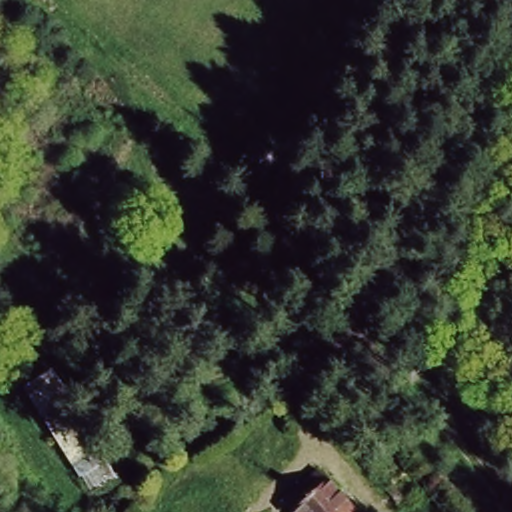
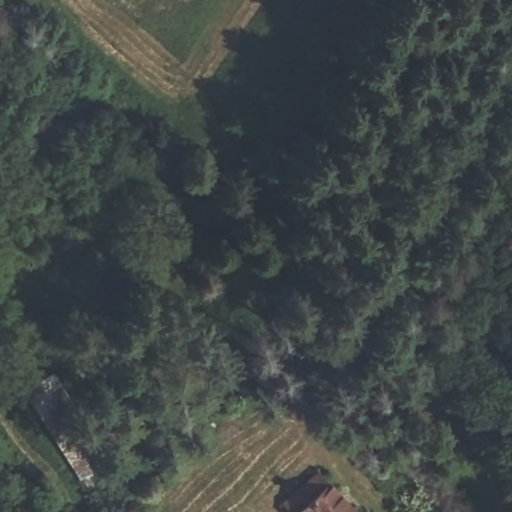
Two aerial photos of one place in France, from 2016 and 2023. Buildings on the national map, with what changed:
unchanged [(57,366),(125,478),(90,498),(20,386),(57,366)]
unchanged [(330,480),(361,512),(293,512),(330,480)]

